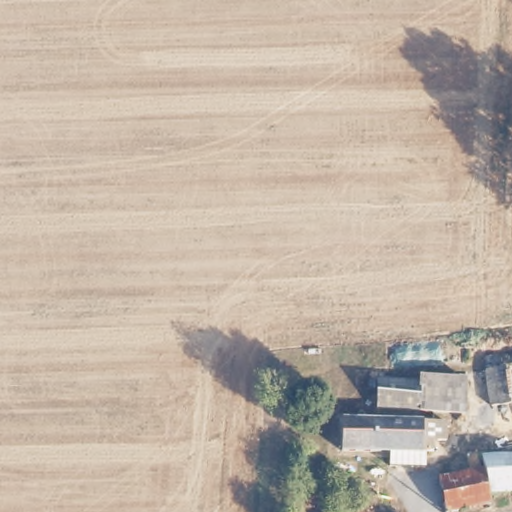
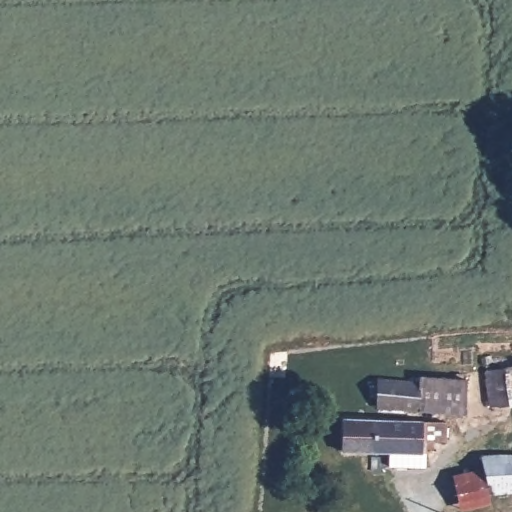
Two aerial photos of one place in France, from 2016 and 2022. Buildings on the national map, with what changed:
unchanged [(495,404),(490,366),(512,363),(512,401),(495,404)]
unchanged [(465,408),(377,403),(377,376),(417,378),(421,375),(465,378),(465,408)]
unchanged [(450,438),(436,438),(436,449),(429,450),(428,464),(389,464),(390,448),(342,447),(343,416),(451,421),(450,438)]
unchanged [(488,465),(486,454),(505,448),(512,450),(512,490),(493,492),(488,465)]
unchanged [(442,476),(488,465),(493,492),(494,500),(450,510),(442,476)]

